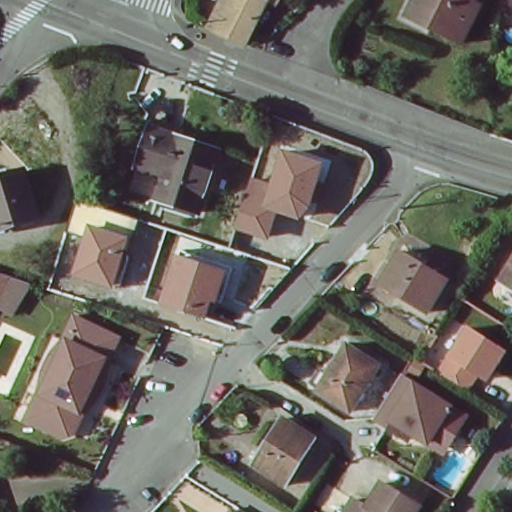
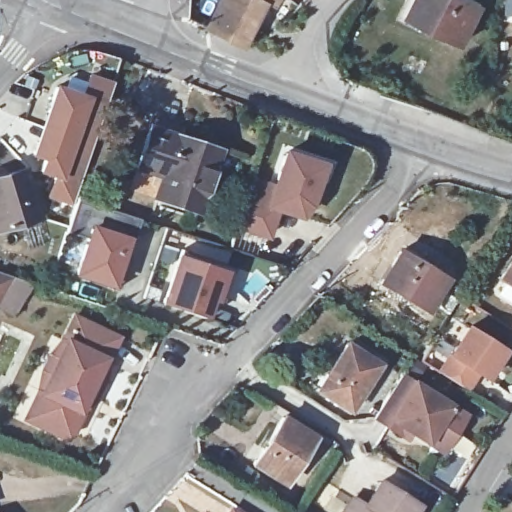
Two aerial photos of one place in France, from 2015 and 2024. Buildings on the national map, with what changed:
unchanged [(210,27),(222,0),(266,0),(245,44),(210,27)]
unchanged [(278,7),(265,2),(266,0),(281,0),(278,7)]
unchanged [(479,4),(461,43),(406,16),(413,0),(471,0),(479,4)]
new [(82,93),(89,74),(114,82),(72,206),(49,199),(54,178),(39,174),(42,161),(30,156),(55,85),(82,93)]
unchanged [(193,213),(125,191),(145,129),(147,122),(166,129),(174,131),(172,137),(212,150),(193,213)]
unchanged [(312,211),(300,220),(280,215),(270,240),(235,231),(251,178),(274,184),(285,151),(326,162),(312,211)]
unchanged [(38,217),(0,230),(0,177),(23,171),(38,217)]
unchanged [(116,291),(72,277),(87,235),(67,231),(78,201),(139,219),(116,291)]
unchanged [(398,252),(445,280),(426,312),(378,283),(398,252)]
unchanged [(512,253),(512,307),(493,294),(491,287),(512,253)]
unchanged [(178,256),(229,272),(218,304),(213,302),(206,320),(161,306),(178,256)]
unchanged [(32,282),(17,318),(0,309),(0,271),(32,282)]
unchanged [(100,397),(81,413),(72,434),(60,437),(24,421),(37,392),(38,368),(47,351),(62,341),(73,317),(117,337),(106,361),(108,380),(100,397)]
unchanged [(449,354),(453,345),(466,324),(510,351),(490,382),(478,374),(467,391),(439,373),(449,354)]
unchanged [(346,345),(379,365),(349,411),(316,391),(346,345)]
unchanged [(423,436),(417,441),(385,420),(410,379),(474,419),(462,440),(454,453),(423,436)]
unchanged [(283,417),(315,437),(285,486),(253,465),(283,417)]
unchanged [(414,512),(345,512),(355,497),(367,506),(382,481),(420,503),(414,512)]

